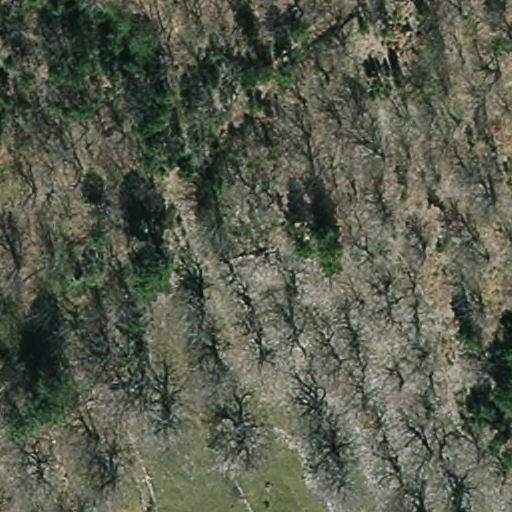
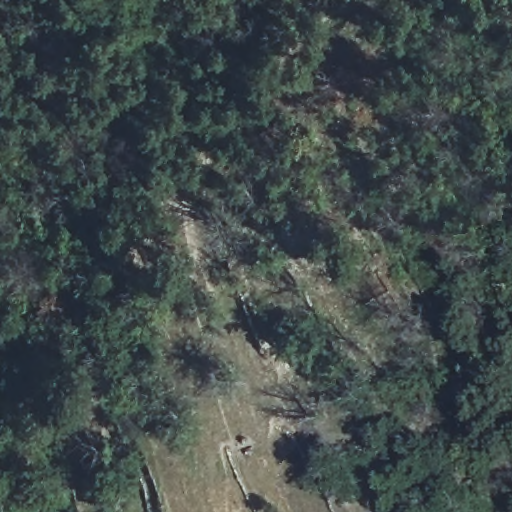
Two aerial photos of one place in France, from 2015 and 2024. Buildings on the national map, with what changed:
[]

